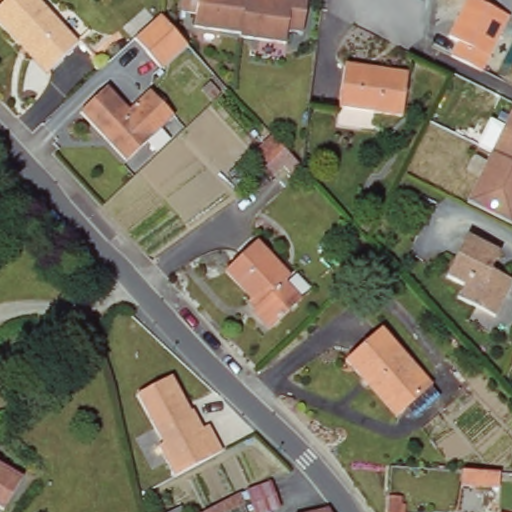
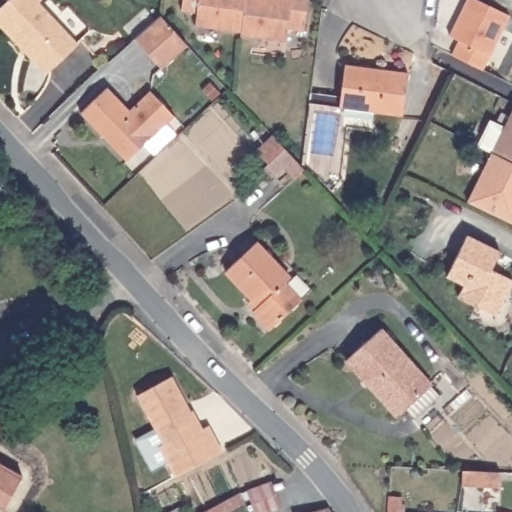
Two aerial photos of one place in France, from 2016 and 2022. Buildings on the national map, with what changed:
unchanged [(27,53),(0,22),(0,6),(7,0),(41,0),(41,1),(78,42),(51,66),(45,72),(27,53)]
unchanged [(182,0),(306,0),(302,29),(285,26),(283,41),(240,35),(240,32),(197,26),(198,14),(180,11),(182,0)]
unchanged [(463,44),(454,39),(472,0),(476,0),(512,18),(512,23),(488,73),(457,58),(463,44)]
unchanged [(162,13),(189,46),(164,69),(137,36),(162,13)]
unchanged [(345,65),(407,74),(403,116),(339,108),(345,65)]
unchanged [(105,88),(126,110),(147,90),(172,116),(124,161),(79,113),(105,88)]
unchanged [(500,145),(507,129),(512,119),(512,163),(495,155),(500,145)]
unchanged [(303,169),(296,177),(284,165),(271,178),(262,168),(267,163),(256,151),(272,134),(303,169)]
unchanged [(472,204),(483,180),(491,164),(495,155),(512,163),(512,224),(471,204),(472,204)]
unchanged [(466,237),(498,254),(490,271),(512,282),(493,317),(457,300),(462,286),(446,278),(466,237)]
unchanged [(256,239),(289,276),(282,283),(300,302),(270,330),(252,311),(257,306),(223,270),(256,239)]
unchanged [(380,326),(440,392),(413,414),(405,404),(395,412),(346,355),(380,326)]
unchanged [(175,372),(193,408),(195,407),(196,408),(205,425),(211,422),(224,448),(181,470),(165,440),(169,437),(162,424),(144,388),(175,372)]
unchanged [(22,474),(4,512),(0,510),(0,464),(22,474)]
unchanged [(506,470),(505,486),(467,483),(468,468),(506,470)]
unchanged [(280,491),(287,510),(287,512),(258,512),(255,502),(280,491)]
unchanged [(241,493),(245,503),(230,512),(206,512),(211,509),(241,493)]
unchanged [(167,502),(172,499),(179,512),(152,512),(151,511),(167,502)]
unchanged [(405,501),(404,512),(386,512),(387,499),(405,501)]
unchanged [(328,512),(320,512),(327,510),(328,512)]

